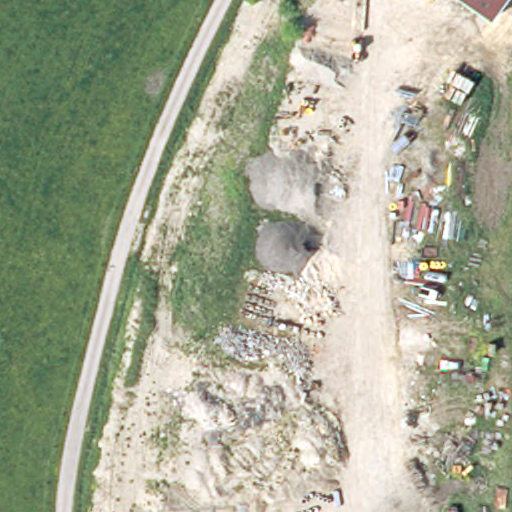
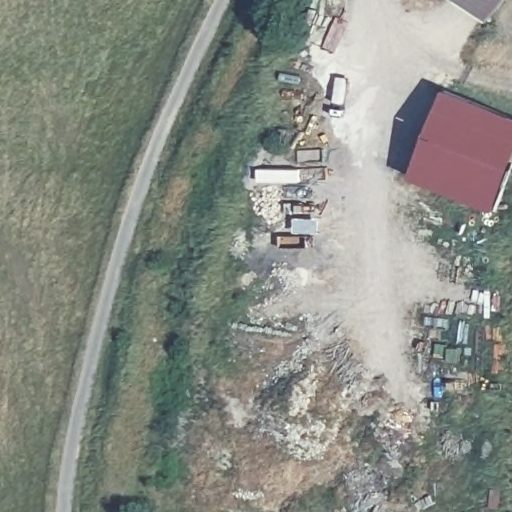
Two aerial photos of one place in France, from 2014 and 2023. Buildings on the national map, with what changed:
unchanged [(465,0),(507,0),(491,19),(465,0)]
new [(447,89),(512,115),(512,168),(495,212),(412,178),(447,89)]

